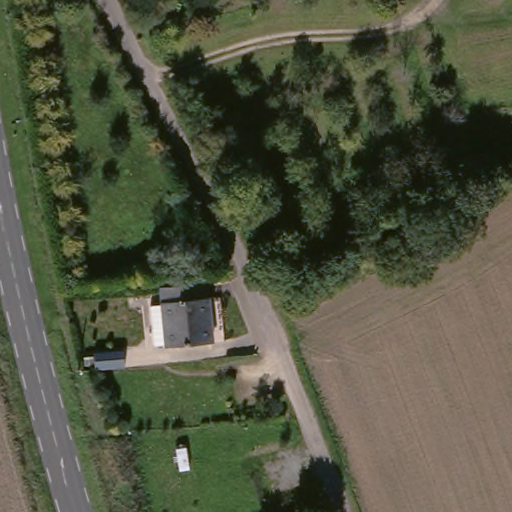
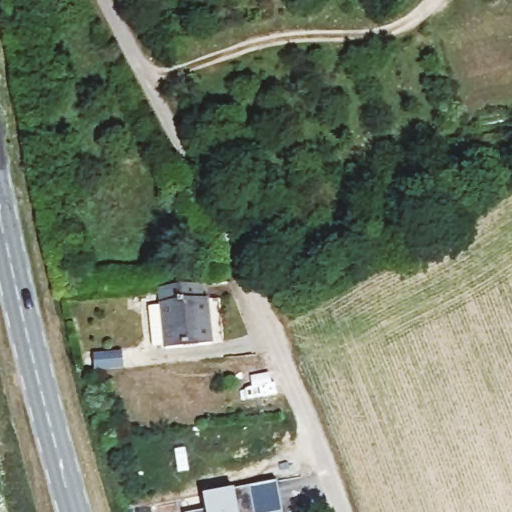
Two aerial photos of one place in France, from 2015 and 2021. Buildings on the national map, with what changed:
unchanged [(151,311),(163,309),(161,292),(202,289),(203,304),(209,303),(214,348),(168,352),(168,350),(155,351),(151,311)]
unchanged [(126,364),(96,366),(95,348),(125,346),(126,364)]
new [(202,494),(276,480),(282,512),(188,512),(205,509),(202,494)]

